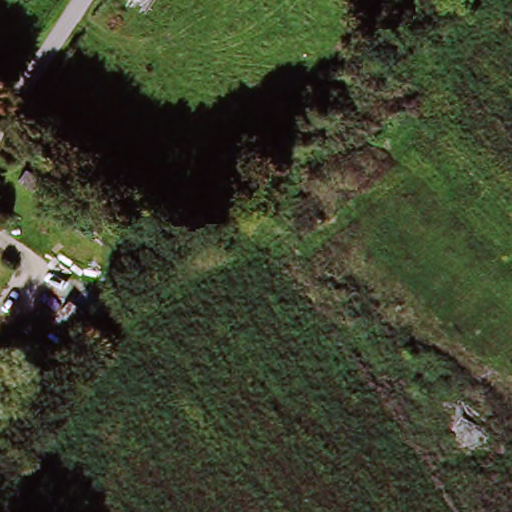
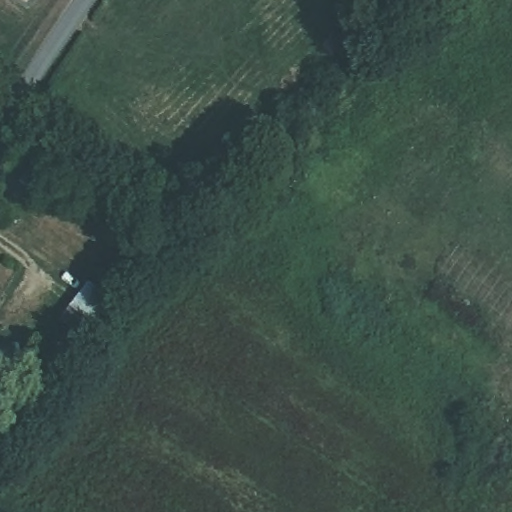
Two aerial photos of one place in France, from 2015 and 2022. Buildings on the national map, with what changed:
unchanged [(60,310),(86,284),(108,306),(82,332),(60,310)]

